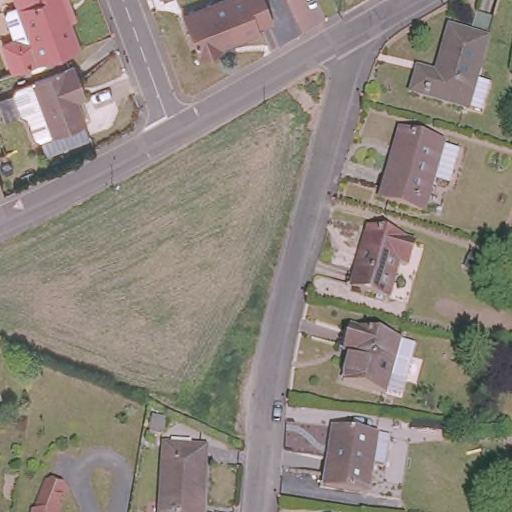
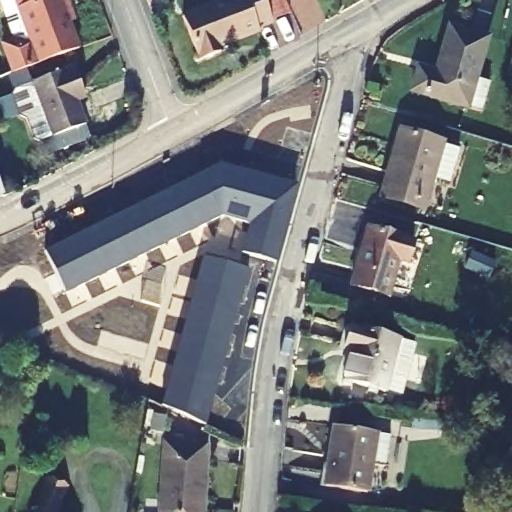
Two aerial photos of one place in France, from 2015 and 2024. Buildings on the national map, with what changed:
unchanged [(73,0),(80,23),(72,26),(82,53),(39,68),(16,0),(73,0)]
unchanged [(259,0),(269,26),(254,32),(255,34),(217,50),(217,54),(197,61),(182,19),(233,0),(259,0)]
unchanged [(412,63),(430,68),(445,23),(482,35),(469,73),(484,79),(475,106),(459,100),(457,103),(405,85),(412,63)]
unchanged [(50,137),(39,141),(32,138),(25,117),(19,114),(12,93),(15,86),(32,81),(75,65),(82,86),(86,97),(76,101),(85,125),(50,137)]
unchanged [(376,195),(398,129),(439,141),(438,144),(454,149),(442,185),(426,181),(417,209),(376,195)]
new [(242,254),(250,226),(224,218),(65,295),(45,254),(220,166),(297,188),(276,264),(242,254)]
unchanged [(412,239),(405,259),(397,257),(384,293),(348,280),(367,224),(412,239)]
new [(162,408),(203,259),(250,273),(205,426),(162,408)]
unchanged [(495,269),(498,270),(491,284),(467,273),(475,259),(495,269)]
unchanged [(386,393),(345,382),(352,354),(345,352),(352,328),(414,344),(404,382),(400,397),(386,393)]
unchanged [(319,487),(331,428),(372,436),(372,438),(386,439),(380,470),(365,468),(360,496),(319,487)]
unchanged [(204,447),(200,512),(160,512),(164,445),(204,447)]
unchanged [(67,490),(56,512),(37,512),(37,511),(40,511),(52,483),(67,490)]

